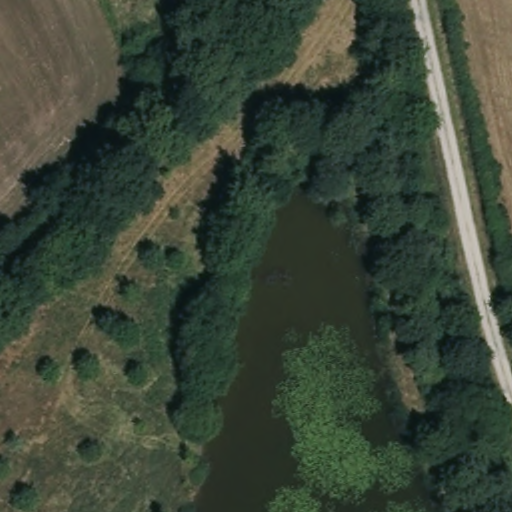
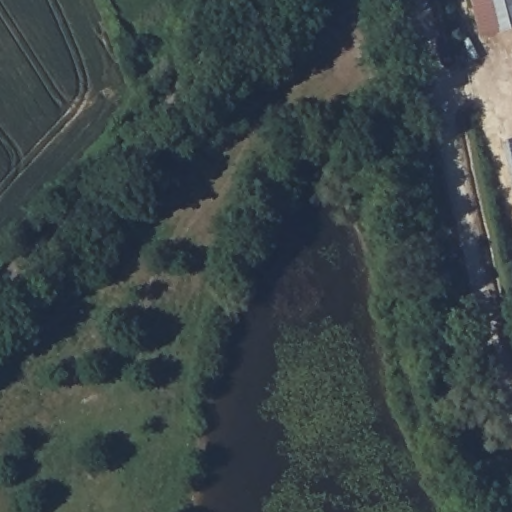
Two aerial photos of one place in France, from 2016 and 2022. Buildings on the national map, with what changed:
new [(480,35),(472,0),(512,0),(512,28),(480,35)]

